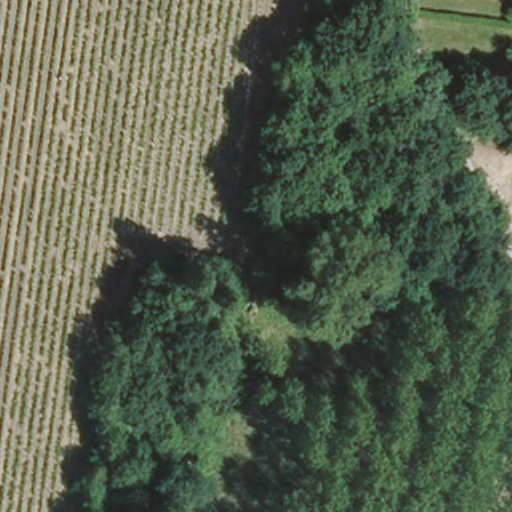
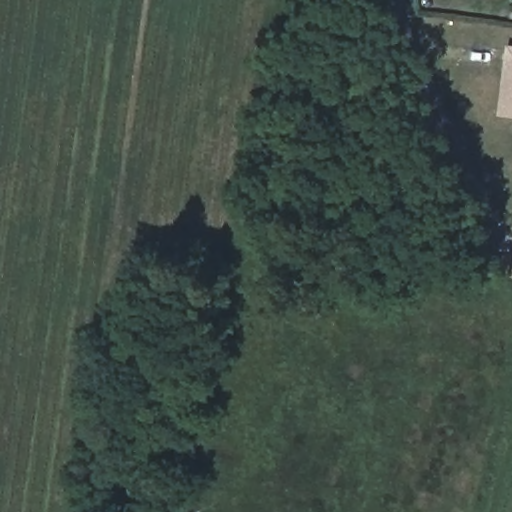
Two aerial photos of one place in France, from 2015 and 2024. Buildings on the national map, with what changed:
new [(512,49),(512,117),(501,116),(507,49),(512,49)]

